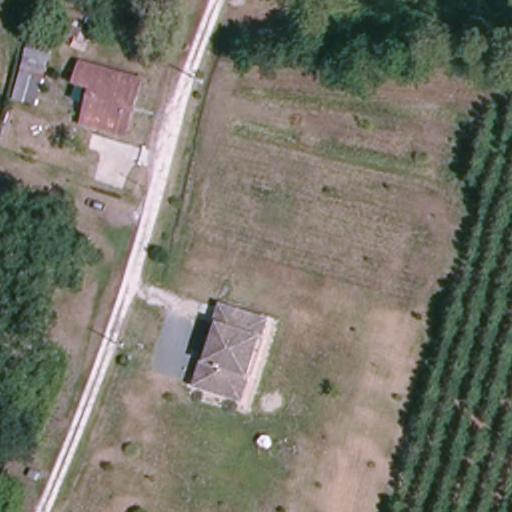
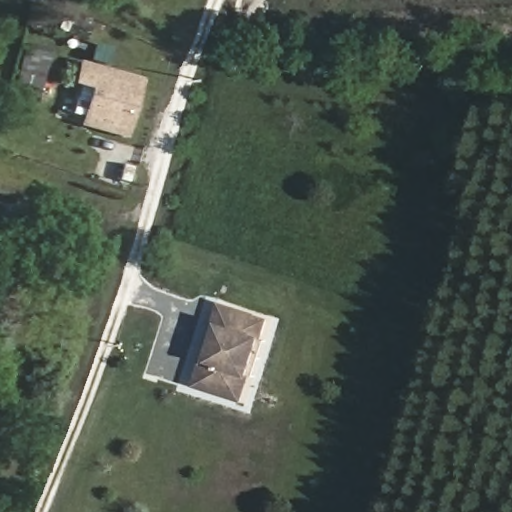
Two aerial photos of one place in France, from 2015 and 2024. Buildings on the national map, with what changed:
unchanged [(62,28),(53,60),(30,52),(40,23),(62,28)]
unchanged [(145,81),(124,139),(88,126),(98,91),(81,86),(91,64),(145,81)]
unchanged [(272,324),(247,402),(187,382),(218,303),(272,324)]

